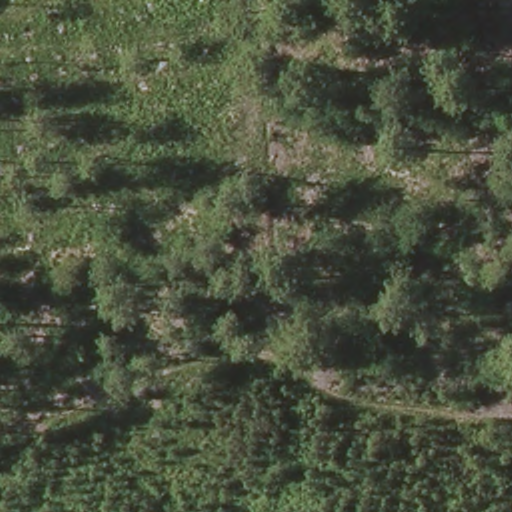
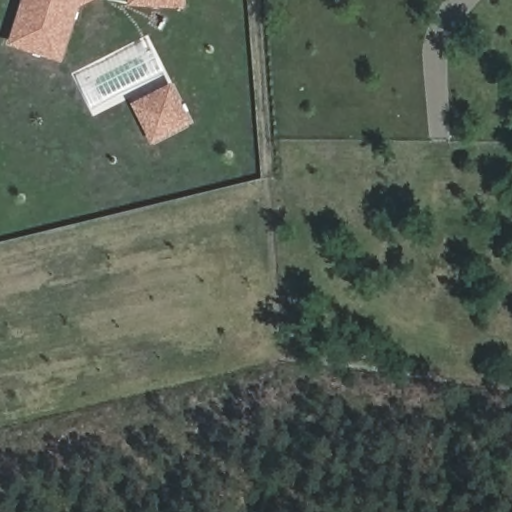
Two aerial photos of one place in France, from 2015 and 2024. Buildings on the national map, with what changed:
new [(79,6),(61,61),(6,44),(20,0),(91,0),(79,6)]
new [(184,9),(127,5),(128,0),(184,0),(184,9)]
new [(150,144),(130,103),(172,82),(192,122),(150,144)]

